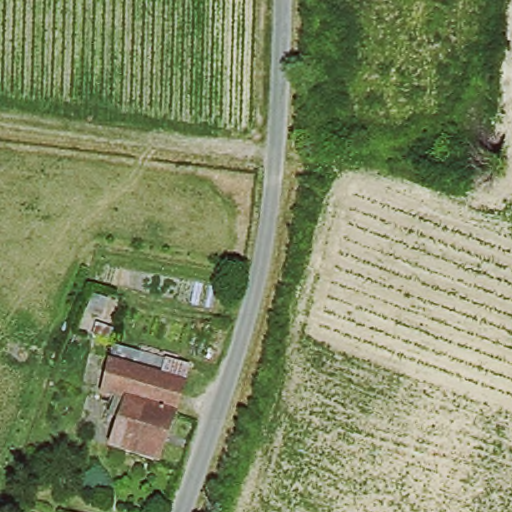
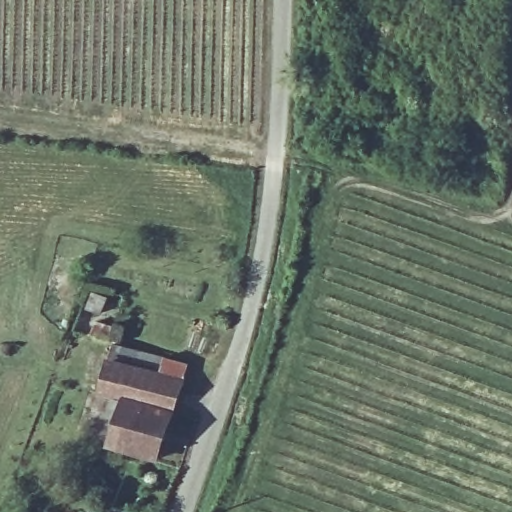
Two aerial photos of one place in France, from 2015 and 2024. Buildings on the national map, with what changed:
unchanged [(118,329),(114,340),(94,334),(98,322),(118,329)]
unchanged [(111,362),(116,345),(174,359),(169,377),(111,362)]
unchanged [(126,401),(103,395),(111,362),(169,377),(190,382),(162,461),(113,445),(126,401)]

